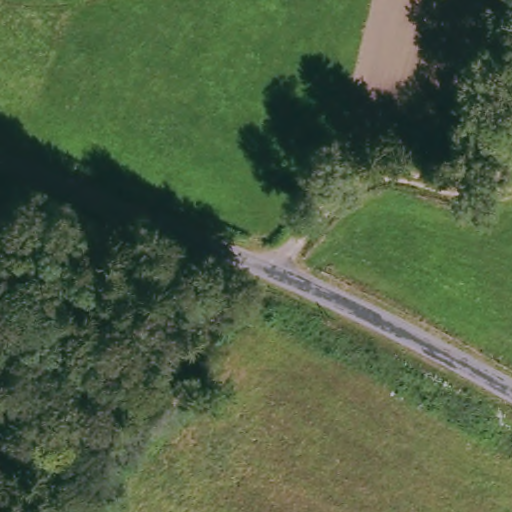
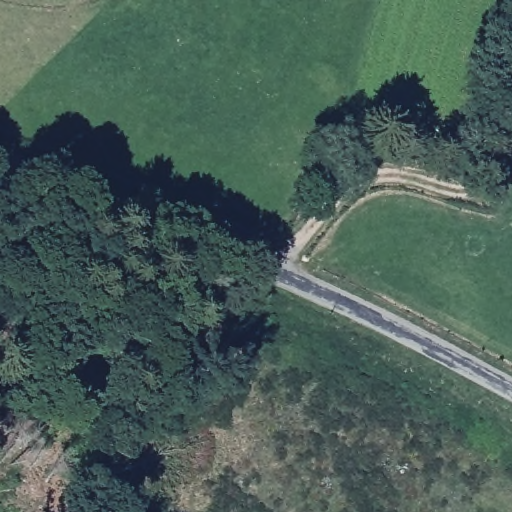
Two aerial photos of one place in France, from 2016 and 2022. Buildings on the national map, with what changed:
unchanged [(488,122),(483,140),(466,134),(471,117),(488,122)]

